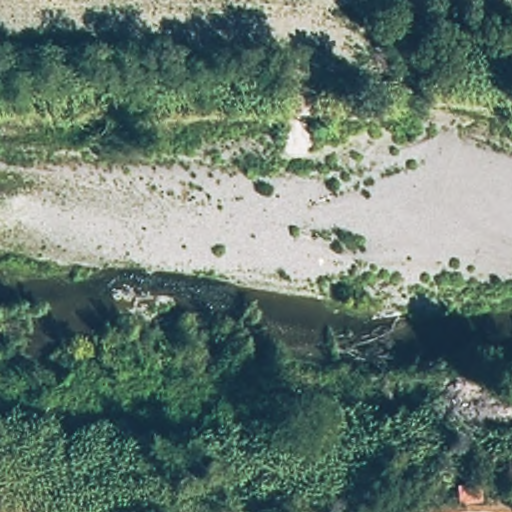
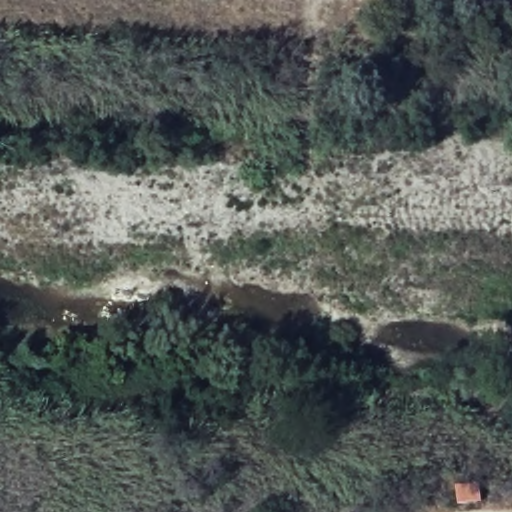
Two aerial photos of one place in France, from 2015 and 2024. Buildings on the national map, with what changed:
unchanged [(456,479),(482,476),(485,500),(459,501),(456,479)]

